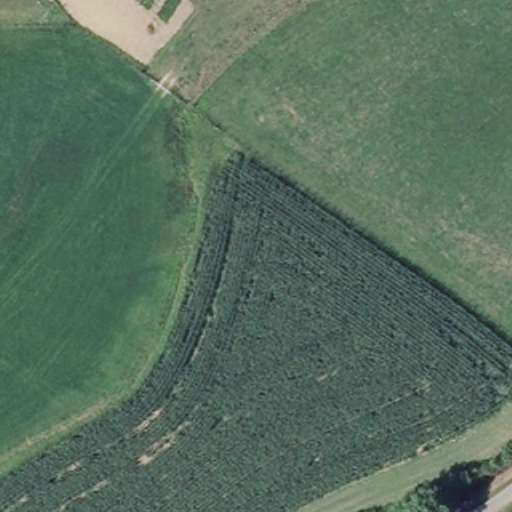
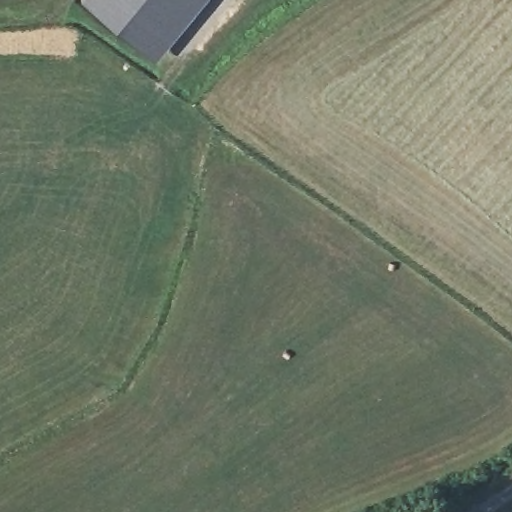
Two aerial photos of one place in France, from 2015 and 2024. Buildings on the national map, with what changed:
new [(80,0),(201,0),(153,61),(80,0)]

